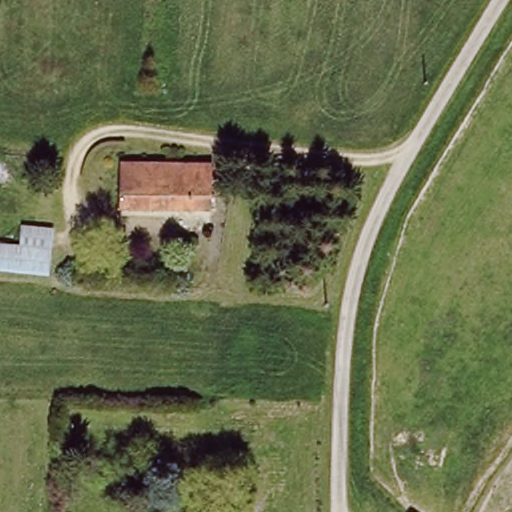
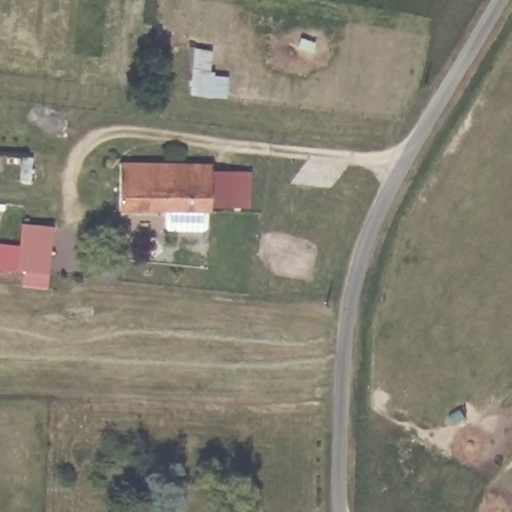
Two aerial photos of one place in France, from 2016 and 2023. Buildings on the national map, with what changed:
unchanged [(119,164),(213,167),(212,211),(118,208),(119,164)]
new [(213,172),(248,172),(247,209),(212,207),(213,172)]
unchanged [(18,250),(19,233),(48,235),(45,277),(0,274),(0,249),(18,250)]

